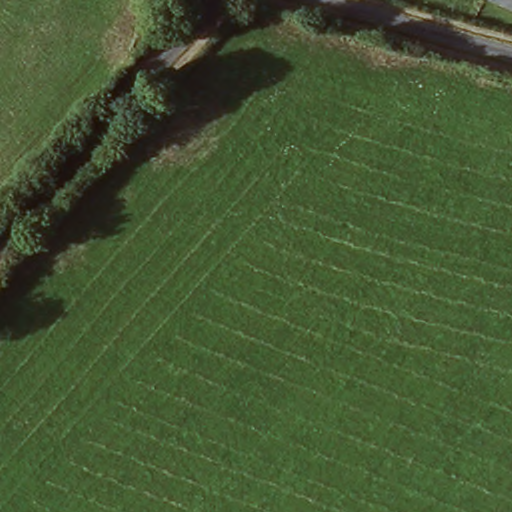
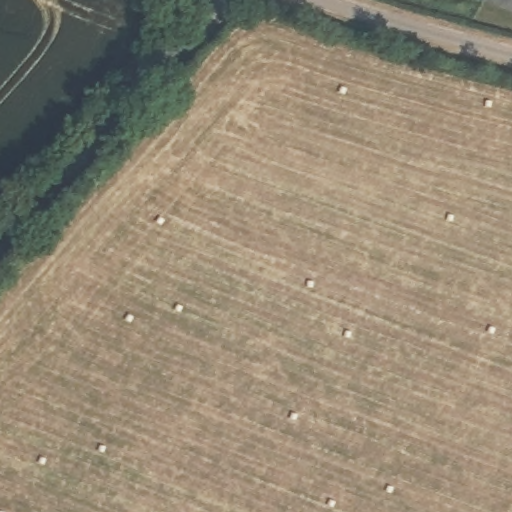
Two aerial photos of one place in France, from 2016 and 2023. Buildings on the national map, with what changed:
unchanged [(512,0),(512,15),(497,0),(512,0)]

